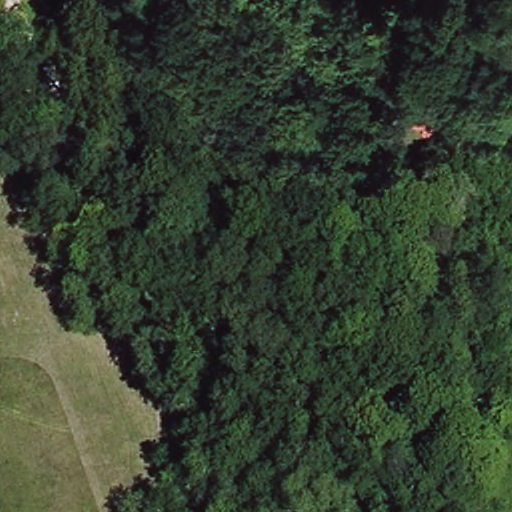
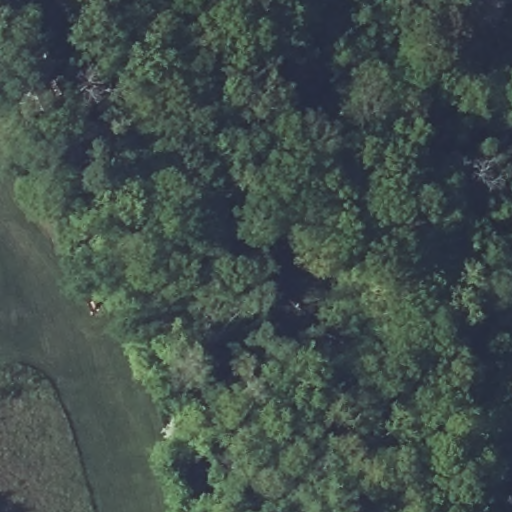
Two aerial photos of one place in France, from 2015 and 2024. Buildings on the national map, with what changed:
unchanged [(428,130),(408,127),(413,89),(433,92),(428,130)]

